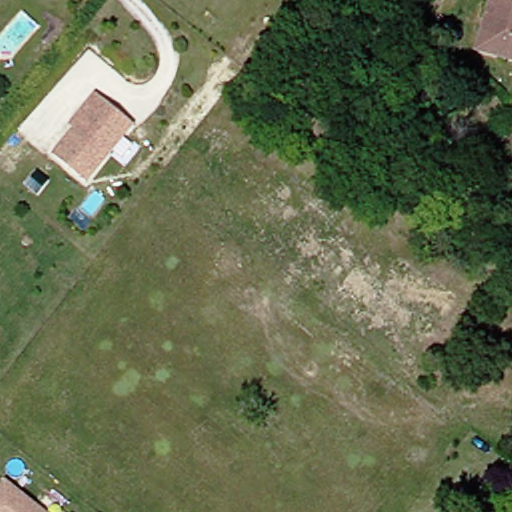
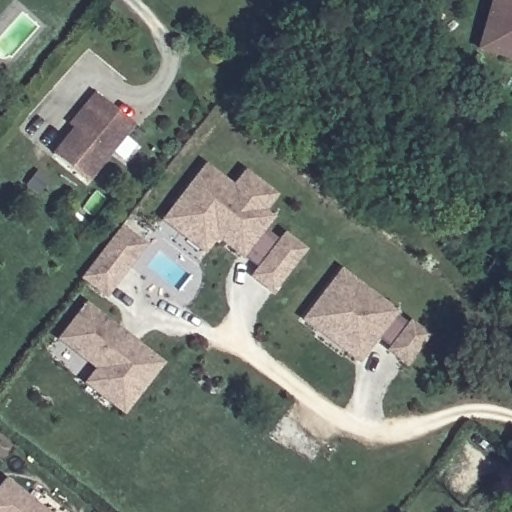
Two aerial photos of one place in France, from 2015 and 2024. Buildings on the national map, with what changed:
unchanged [(492,0),(512,0),(512,63),(481,54),(492,0)]
unchanged [(58,157),(93,111),(89,107),(99,95),(137,125),(91,183),(58,157)]
new [(248,278),(255,268),(243,258),(241,260),(216,240),(204,253),(160,221),(206,163),(233,183),(244,169),(277,194),(265,210),(273,216),(263,232),(276,240),(283,232),(305,249),(269,294),(248,278)]
new [(80,280),(121,226),(145,244),(104,297),(80,280)]
new [(339,268),(398,311),(394,315),(404,323),(408,319),(427,334),(403,366),(384,351),(387,347),(377,339),(358,363),(301,320),(339,268)]
new [(122,415),(82,384),(92,370),(56,340),(86,304),(162,363),(122,415)]
unchanged [(48,512),(0,512),(0,484),(5,477),(48,512)]

